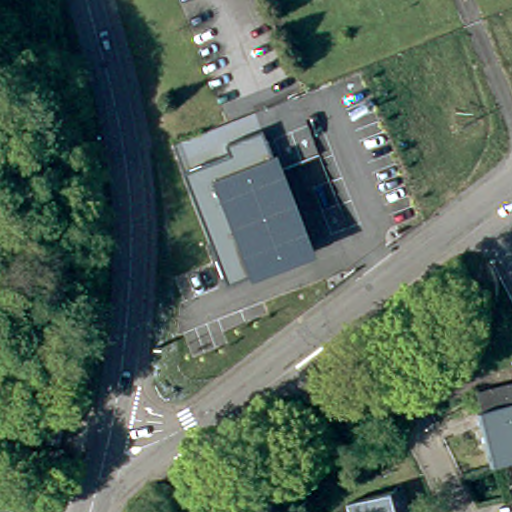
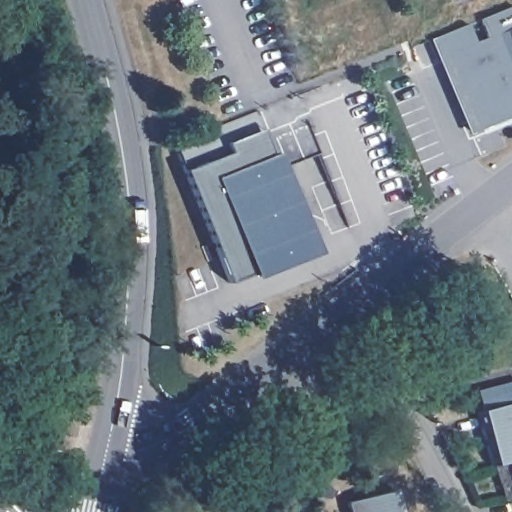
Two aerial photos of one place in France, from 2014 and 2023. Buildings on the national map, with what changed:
new [(475,42),(488,38),(481,20),(512,7),(512,116),(467,133),(430,39),(469,25),(475,42)]
unchanged [(178,143),(257,113),(275,157),(280,154),(317,254),(255,279),(252,270),(230,282),(178,143)]
unchanged [(500,463),(487,409),(493,408),(487,390),(512,383),(512,460),(500,463)]
unchanged [(350,502),(398,489),(404,512),(353,512),(350,502)]

